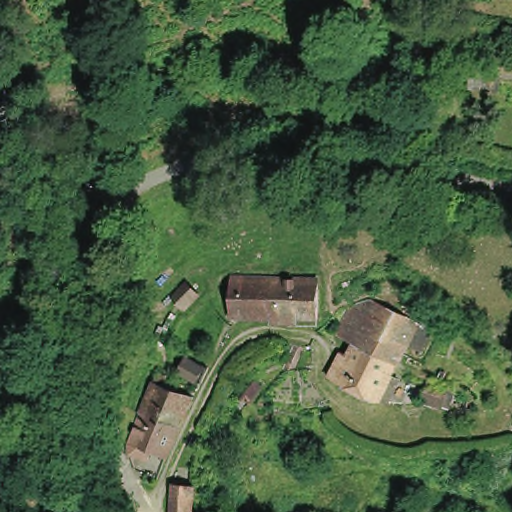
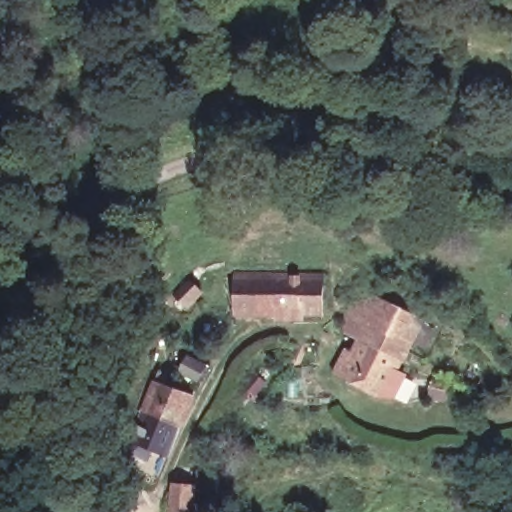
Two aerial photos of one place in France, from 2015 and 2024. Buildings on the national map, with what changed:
unchanged [(325,274),(325,312),(303,312),(303,318),(280,317),(280,310),(236,309),(237,271),(325,274)]
unchanged [(187,283),(200,293),(187,311),(173,301),(187,283)]
unchanged [(338,375),(348,355),(356,359),(366,340),(347,330),(352,319),(340,314),(359,303),(380,298),(386,301),(425,321),(405,360),(385,398),(346,378),(338,375)]
unchanged [(207,384),(192,388),(185,386),(193,364),(212,371),(207,384)]
unchanged [(237,391),(251,374),(264,385),(250,402),(237,391)]
unchanged [(147,414),(157,384),(195,399),(182,429),(147,414)]
unchanged [(132,445),(135,435),(138,436),(147,414),(182,429),(170,459),(155,453),(150,464),(133,456),(135,447),(132,445)]
unchanged [(186,512),(167,512),(168,490),(188,492),(186,512)]

